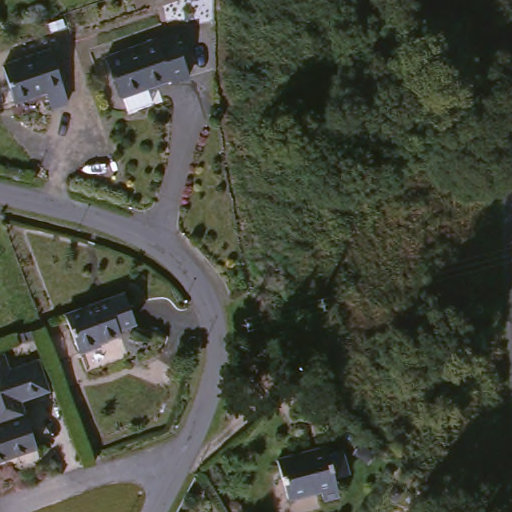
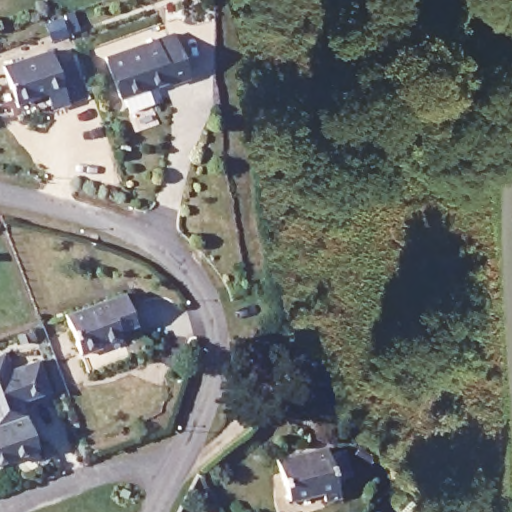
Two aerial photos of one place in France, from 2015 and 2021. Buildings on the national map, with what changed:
unchanged [(182,34),(197,81),(175,88),(173,85),(125,101),(109,60),(182,34)]
unchanged [(53,50),(72,100),(56,107),(50,91),(20,103),(7,67),(53,50)]
unchanged [(130,292),(140,322),(127,328),(130,334),(106,343),(107,347),(87,355),(73,315),(130,292)]
unchanged [(7,375),(35,363),(47,392),(17,405),(34,447),(0,461),(0,359),(7,375)]
unchanged [(323,443),(326,451),(340,446),(348,472),(333,476),(340,496),(325,501),(322,490),(292,500),(278,459),(323,443)]

